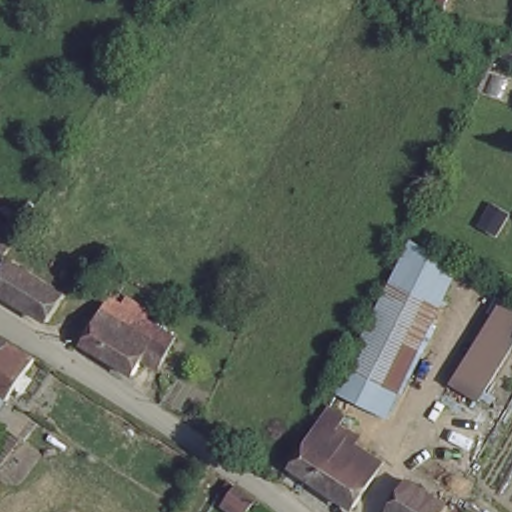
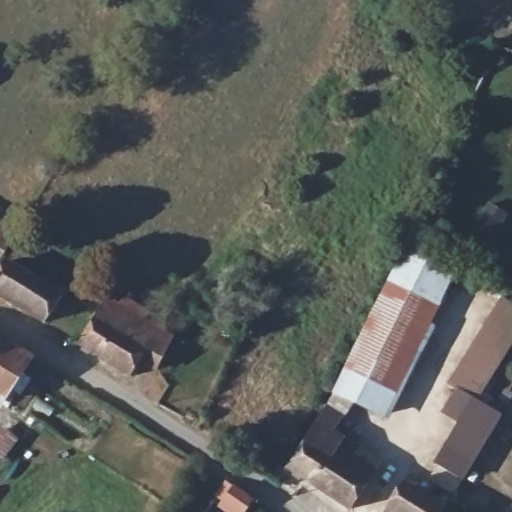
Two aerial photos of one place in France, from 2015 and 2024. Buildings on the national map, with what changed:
unchanged [(2,252),(0,251),(0,222),(16,232),(2,252)]
unchanged [(391,278),(406,247),(452,272),(437,302),(391,278)]
unchanged [(45,320),(0,294),(0,270),(5,261),(61,295),(45,320)]
unchanged [(128,280),(124,286),(117,283),(120,277),(128,280)]
unchanged [(392,393),(346,370),(391,278),(437,302),(392,393)]
unchanged [(157,374),(140,363),(130,380),(80,348),(115,286),(122,290),(113,305),(122,310),(126,302),(147,315),(143,323),(173,341),(157,374)]
unchanged [(480,401),(464,392),(452,385),(506,298),(512,302),(512,349),(480,401)]
unchanged [(3,395),(8,397),(5,400),(4,402),(0,400),(0,401),(0,350),(23,363),(3,395)]
unchanged [(392,393),(381,415),(335,392),(346,370),(392,393)]
new [(464,392),(480,401),(501,414),(463,480),(433,463),(456,422),(439,412),(457,388),(464,392)]
unchanged [(370,486),(352,512),(343,512),(288,475),(331,413),(346,423),(341,431),(359,443),(354,451),(379,468),(368,485),(370,486)]
unchanged [(435,503),(438,498),(443,500),(442,501),(436,512),(382,512),(400,481),(435,503)]
unchanged [(251,508),(248,512),(234,512),(224,505),(216,500),(226,485),(234,490),(250,501),(254,503),(251,508)]

